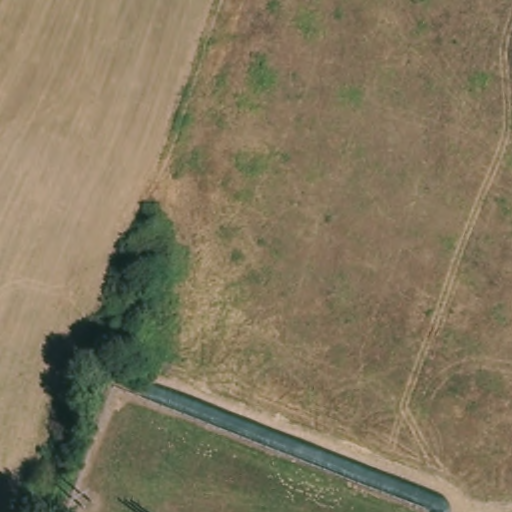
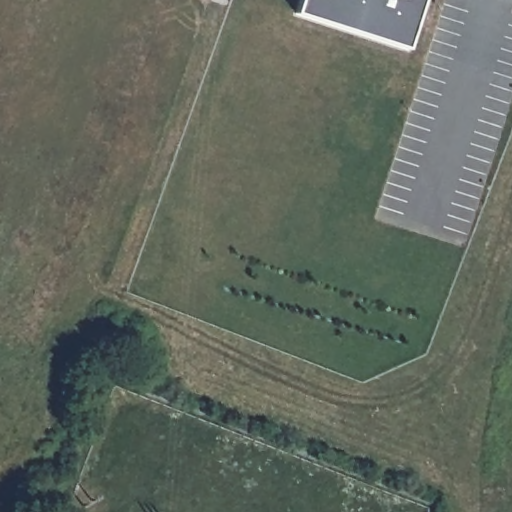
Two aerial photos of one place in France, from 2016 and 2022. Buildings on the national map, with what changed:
new [(301,16),(306,0),(431,0),(414,52),(301,16)]

